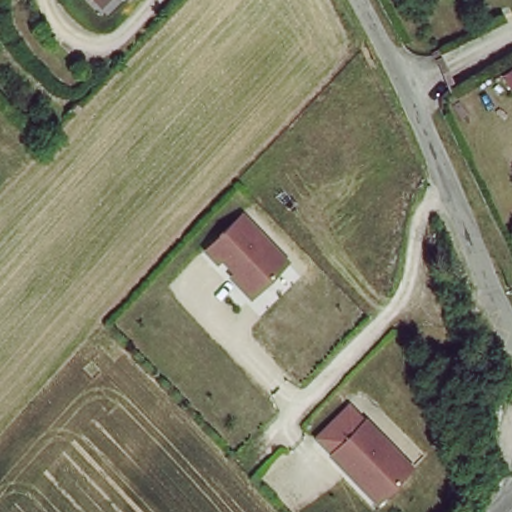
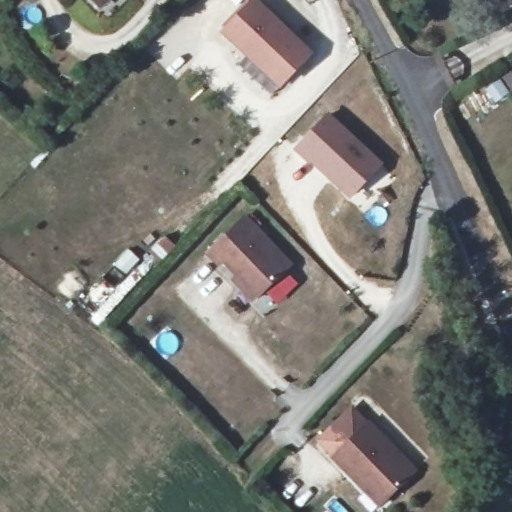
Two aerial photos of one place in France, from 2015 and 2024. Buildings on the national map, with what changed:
new [(240,65),(246,56),(221,32),(250,0),(257,0),(312,51),(278,87),(272,95),(240,65)]
new [(309,165),(294,150),(327,112),(382,163),(350,199),(311,162),(309,165)]
unchanged [(242,215),(290,260),(252,296),(208,249),(242,215)]
unchanged [(354,406),(416,469),(382,501),(320,438),(354,406)]

